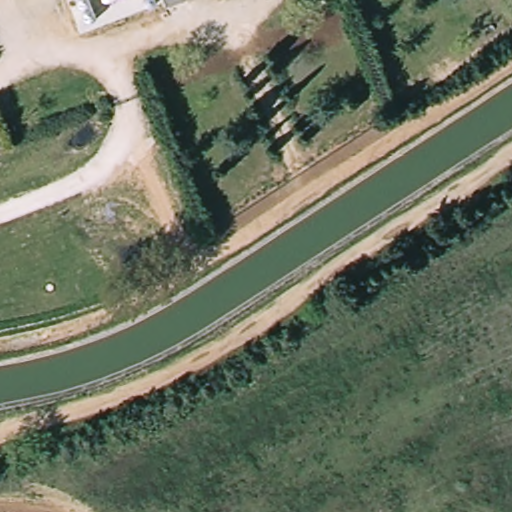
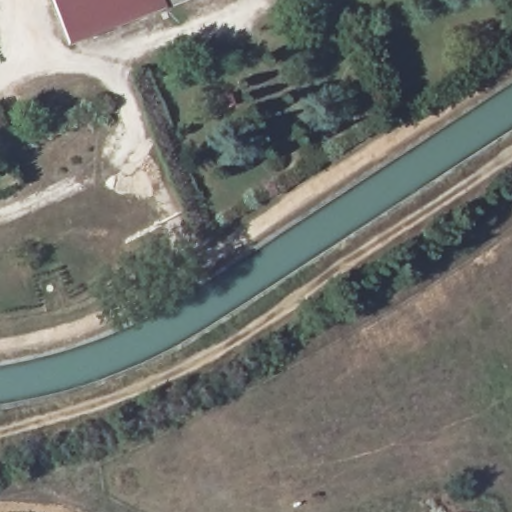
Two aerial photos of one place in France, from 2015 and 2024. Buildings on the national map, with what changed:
new [(165,7),(70,44),(52,0),(162,0),(165,7)]
unchanged [(167,5),(165,0),(182,0),(167,5)]

